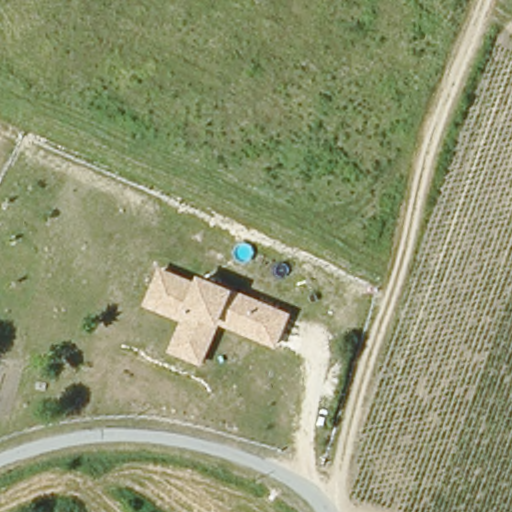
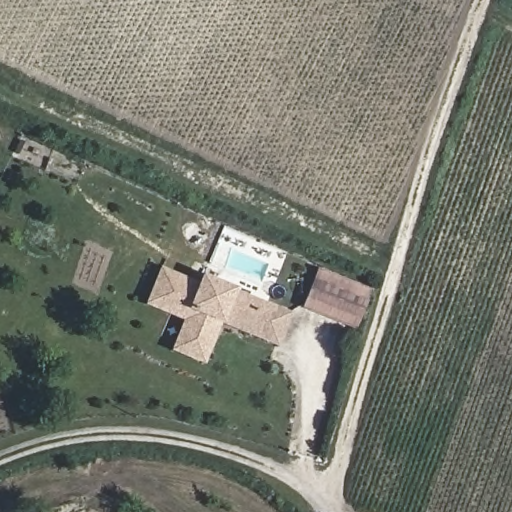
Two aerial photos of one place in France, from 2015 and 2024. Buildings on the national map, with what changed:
unchanged [(278,349),(220,326),(205,366),(170,352),(182,321),(146,307),(162,268),(198,284),(202,277),(234,289),(293,313),(278,349)]
new [(372,291),(356,332),(302,309),(318,269),(372,291)]

